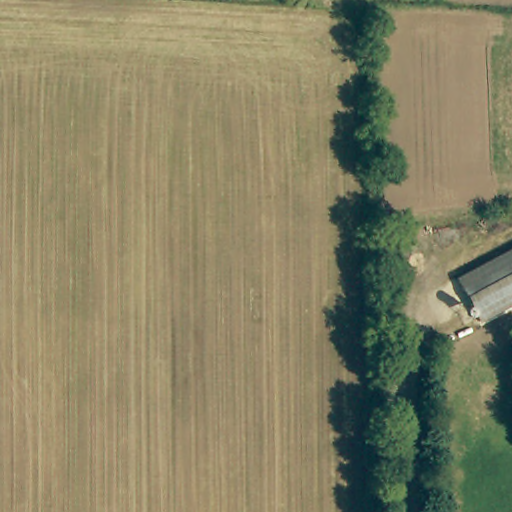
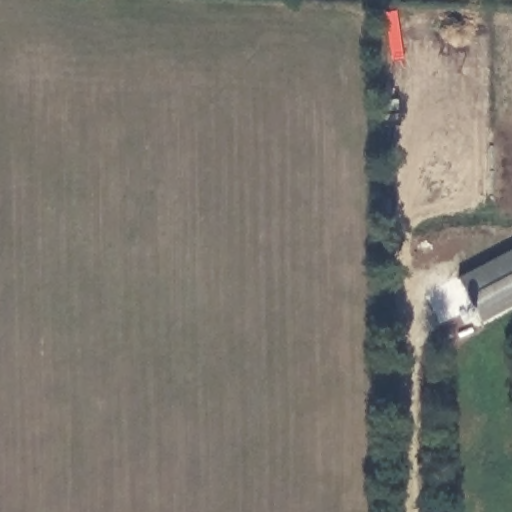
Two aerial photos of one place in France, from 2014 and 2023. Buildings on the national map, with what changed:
unchanged [(512,308),(481,324),(479,325),(454,281),(512,251),(512,308)]

